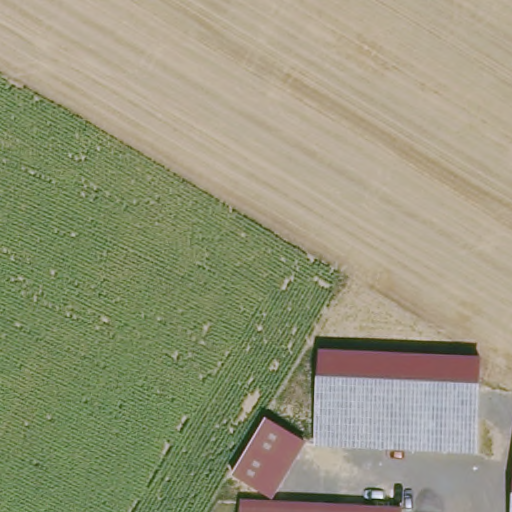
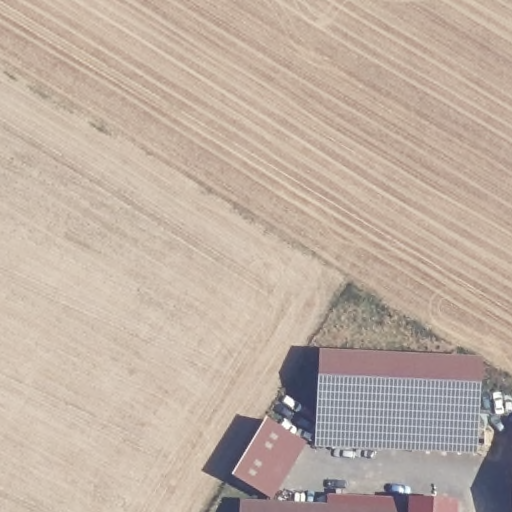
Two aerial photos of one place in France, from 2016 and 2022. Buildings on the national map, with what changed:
unchanged [(323,352),(485,360),(480,455),(318,447),(323,352)]
unchanged [(236,477),(270,420),(309,442),(276,499),(236,477)]
unchanged [(245,502),(406,510),(406,512),(244,512),(245,502)]

